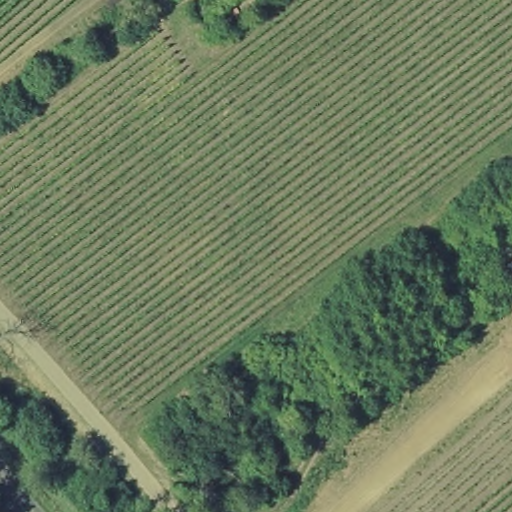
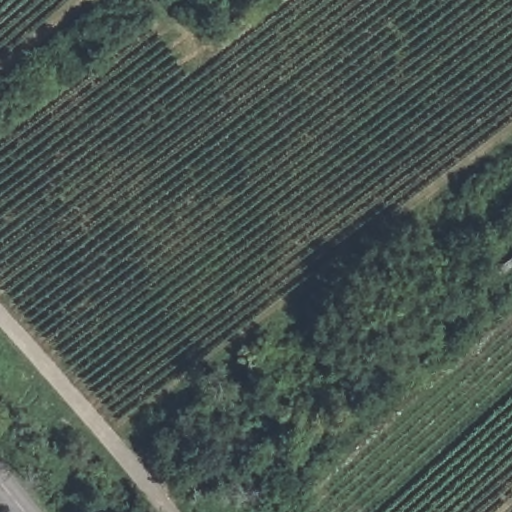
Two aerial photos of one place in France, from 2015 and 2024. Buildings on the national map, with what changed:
unchanged [(256,10),(240,24),(225,7),(234,0),(246,0),(256,10)]

